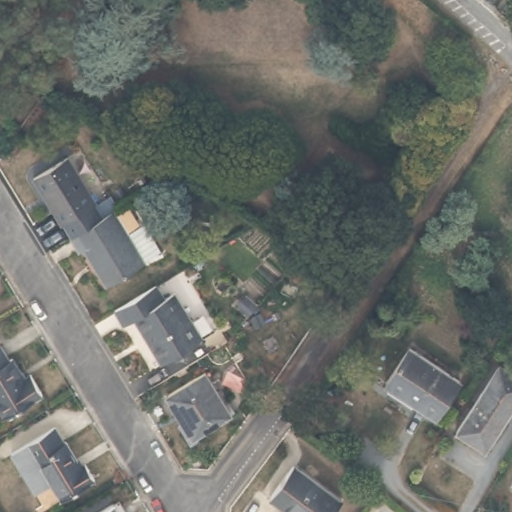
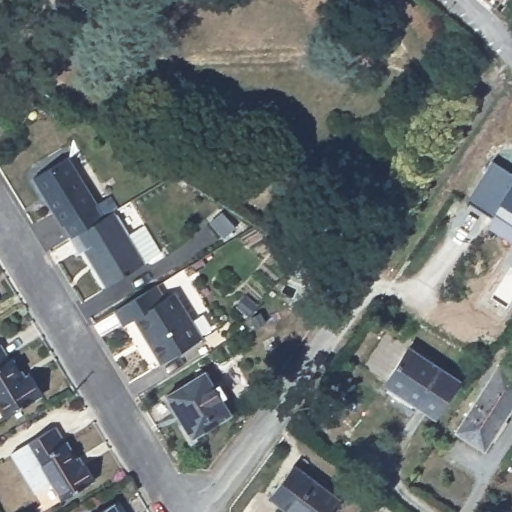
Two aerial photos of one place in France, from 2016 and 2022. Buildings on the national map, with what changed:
new [(486,0),(502,0),(495,9),(486,0)]
demolished [(510,20),(512,16),(512,22),(510,20)]
unchanged [(96,204),(62,225),(35,179),(70,157),(96,204)]
new [(495,214),(492,217),(467,201),(493,161),(512,173),(512,225),(495,214)]
unchanged [(124,238),(140,229),(157,256),(140,266),(141,268),(102,290),(80,254),(76,257),(67,242),(110,215),(124,238)]
unchanged [(337,271),(346,258),(355,263),(346,277),(337,271)]
unchanged [(114,312),(152,290),(160,302),(170,297),(197,343),(157,366),(130,323),(121,329),(112,314),(114,312)]
unchanged [(15,356),(27,376),(34,372),(46,391),(8,415),(0,402),(0,341),(1,340),(12,358),(15,356)]
unchanged [(435,417),(387,385),(411,348),(460,380),(435,417)]
unchanged [(485,451),(457,431),(500,365),(512,373),(512,410),(485,451)]
unchanged [(231,413),(192,435),(167,393),(205,370),(231,413)]
unchanged [(10,458),(20,452),(55,431),(64,446),(66,447),(81,472),(87,469),(95,483),(63,503),(53,487),(45,492),(35,498),(10,458)]
unchanged [(339,500),(331,512),(284,512),(266,499),(290,466),(339,500)]
unchanged [(116,512),(103,512),(112,506),(116,512)]

